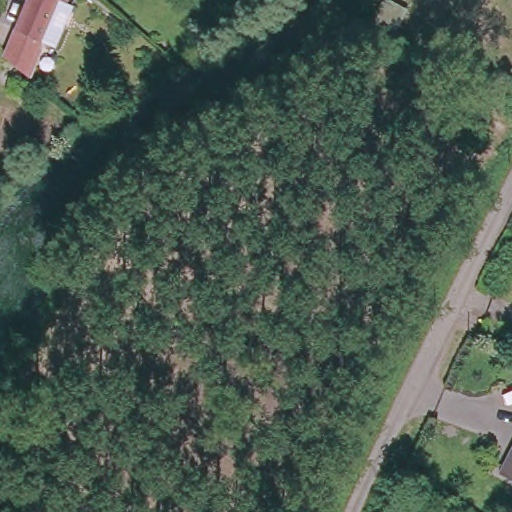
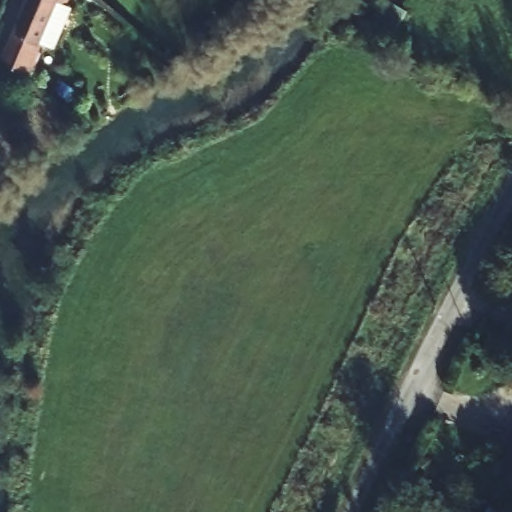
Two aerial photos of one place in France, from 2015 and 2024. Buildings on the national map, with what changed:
unchanged [(27,0),(62,0),(62,1),(67,3),(69,9),(55,44),(38,37),(34,47),(38,48),(33,64),(35,65),(29,76),(3,57),(27,0)]
unchanged [(512,453),(512,476),(503,473),(512,453)]

